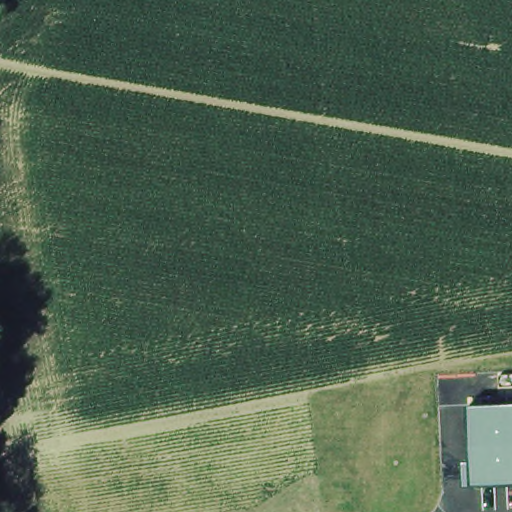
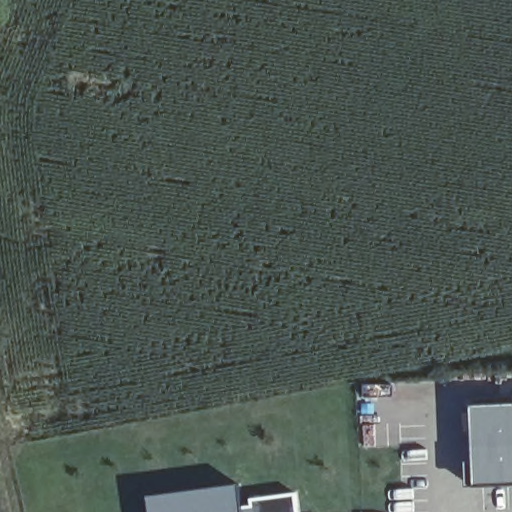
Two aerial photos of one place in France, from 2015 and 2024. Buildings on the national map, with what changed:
unchanged [(465,461),(474,461),(473,406),(512,404),(512,485),(466,487),(465,461)]
new [(243,508),(244,512),(150,512),(148,498),(240,486),(243,508)]
new [(299,512),(244,512),(243,508),(251,507),(251,499),(296,494),(299,512)]

